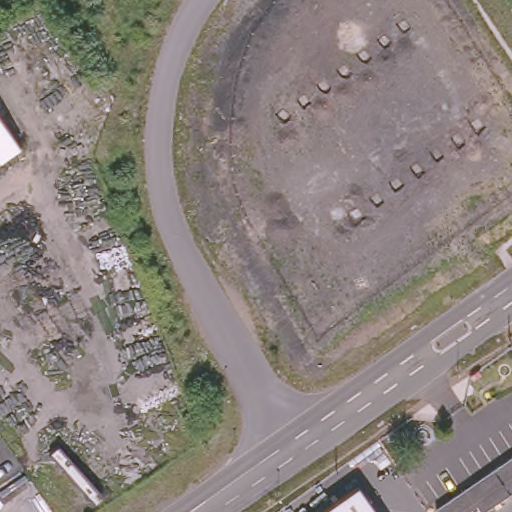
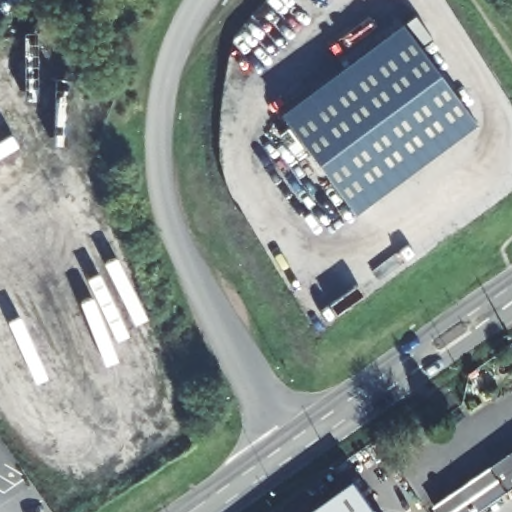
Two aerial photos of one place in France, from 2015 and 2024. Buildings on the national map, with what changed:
new [(403,24),(478,123),(356,213),(282,114),(403,24)]
unchanged [(0,159),(0,113),(21,144),(0,159)]
unchanged [(481,512),(444,512),(439,505),(512,454),(512,490),(481,512)]
unchanged [(376,512),(325,512),(359,488),(376,512)]

